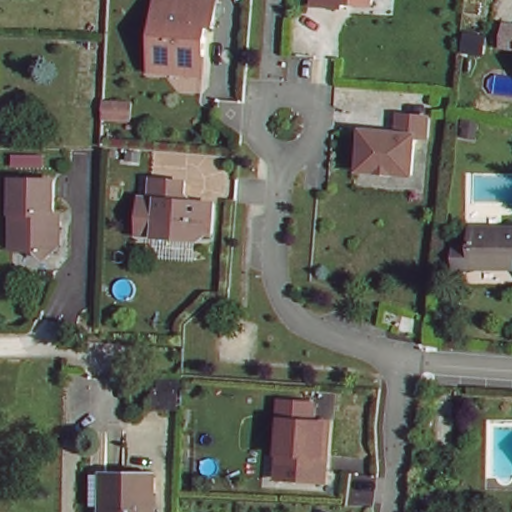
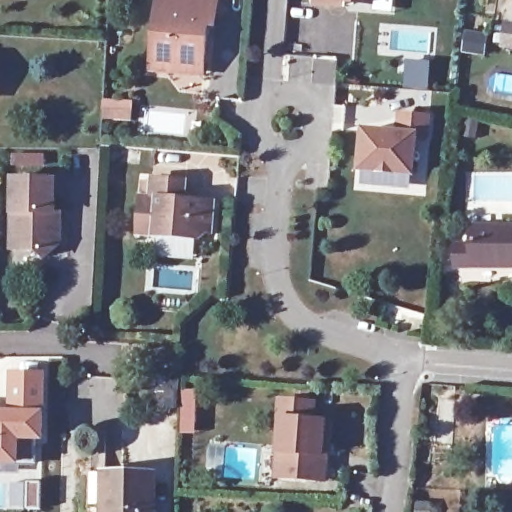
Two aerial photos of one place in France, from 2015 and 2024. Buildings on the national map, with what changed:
unchanged [(148,66),(154,0),(213,0),(211,23),(204,23),(202,51),(200,71),(165,68),(148,66)]
unchanged [(315,2),(316,0),(345,0),(345,5),(315,2)]
unchanged [(351,0),(374,0),(373,2),(351,0)]
unchanged [(500,31),(512,31),(512,51),(498,51),(500,31)]
unchanged [(421,116),(419,136),(407,135),(404,173),(352,167),(356,128),(390,131),(392,113),(421,116)]
unchanged [(147,223),(149,194),(158,195),(159,176),(193,178),(192,197),(221,199),(220,229),(207,228),(206,235),(163,232),(147,231),(147,223)]
unchanged [(49,182),(50,222),(58,221),(59,244),(42,262),(30,251),(10,250),(9,181),(49,182)]
unchanged [(472,231),(512,228),(512,268),(451,272),(451,252),(473,249),(472,231)]
new [(43,442),(37,442),(36,464),(18,464),(0,464),(0,409),(10,410),(10,372),(45,373),(43,442)]
unchanged [(280,456),(283,417),(280,417),(282,400),(315,402),(314,419),(331,420),(328,454),(323,454),(322,461),(327,462),(326,480),(284,477),(278,476),(280,456)]
unchanged [(104,508),(88,509),(87,479),(104,478),(153,476),(152,512),(104,512),(104,508)]

